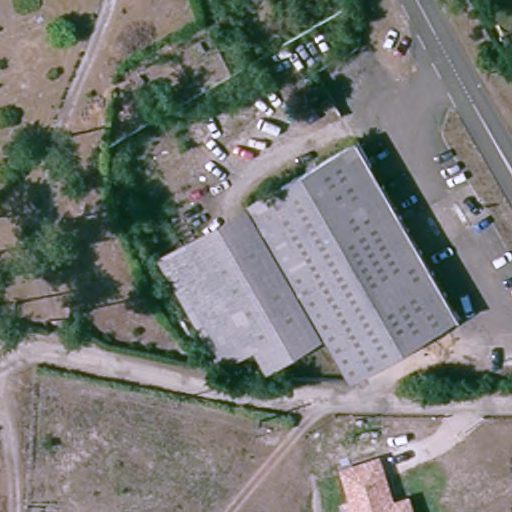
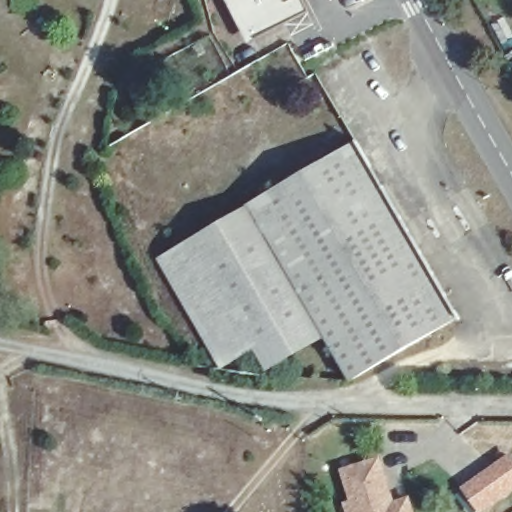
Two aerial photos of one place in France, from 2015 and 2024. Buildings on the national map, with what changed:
new [(247,45),(224,0),(302,0),(308,13),(247,45)]
unchanged [(246,202),(357,137),(459,313),(349,380),(322,335),(246,202)]
unchanged [(266,370),(252,345),(189,236),(246,202),(322,335),(266,370)]
unchanged [(252,345),(218,365),(158,254),(189,236),(252,345)]
new [(512,455),(512,492),(485,512),(480,512),(462,486),(510,452),(512,455)]
unchanged [(412,496),(417,512),(353,512),(340,470),(381,456),(394,501),(412,496)]

